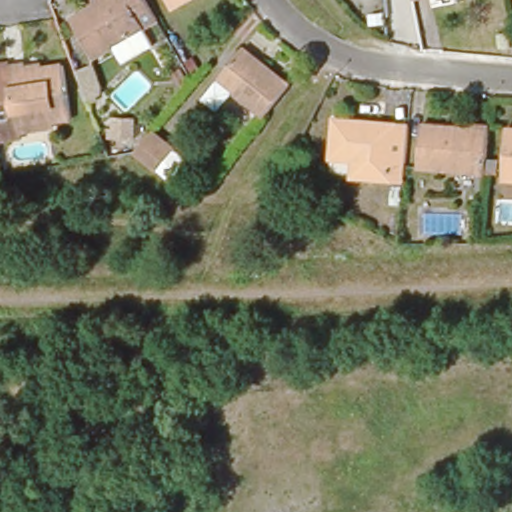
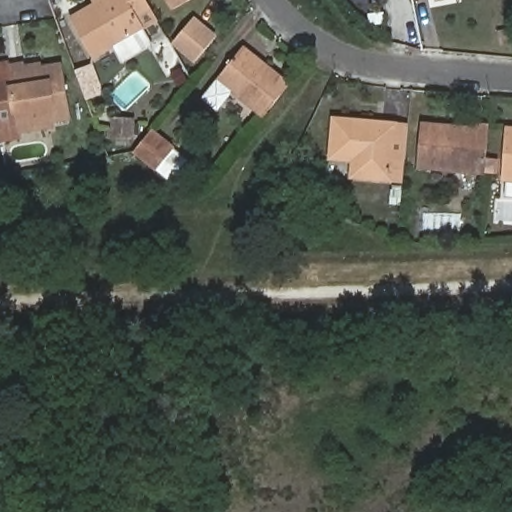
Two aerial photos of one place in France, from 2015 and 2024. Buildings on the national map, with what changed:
unchanged [(145,31),(95,59),(73,21),(97,8),(95,2),(99,0),(148,0),(152,8),(137,16),(145,31)]
unchanged [(177,10),(171,0),(195,0),(177,10)]
new [(189,20),(212,38),(194,62),(171,44),(189,20)]
unchanged [(214,80),(239,50),(257,65),(259,63),(285,84),(259,116),(214,80)]
unchanged [(89,64),(100,92),(86,98),(74,71),(89,64)]
unchanged [(17,135),(15,128),(11,106),(0,108),(0,68),(5,67),(22,65),(23,71),(60,65),(71,119),(51,122),(53,129),(17,135)]
unchanged [(352,172),(354,156),(330,154),(333,116),(409,121),(406,162),(404,177),(390,176),(352,172)]
unchanged [(134,117),(133,139),(112,138),(110,117),(134,117)]
unchanged [(417,169),(421,127),(469,130),(469,125),(489,125),(485,174),(417,169)]
unchanged [(504,126),(512,127),(512,178),(500,177),(504,126)]
unchanged [(155,167),(136,151),(152,130),(172,147),(155,167)]

